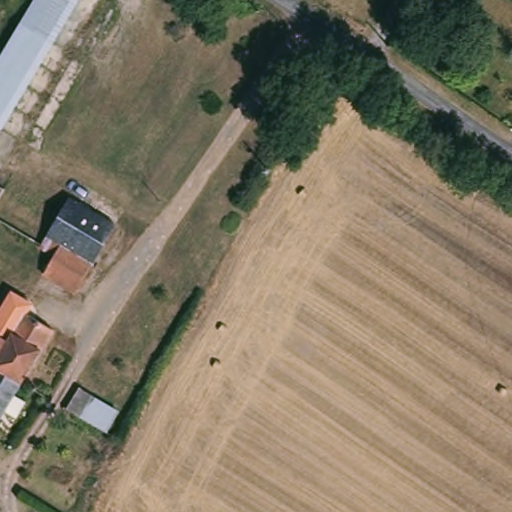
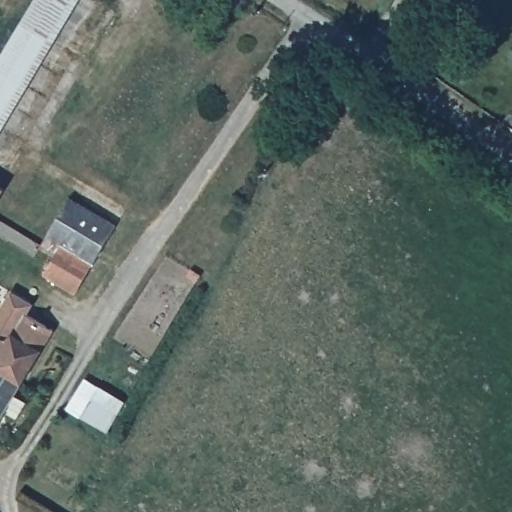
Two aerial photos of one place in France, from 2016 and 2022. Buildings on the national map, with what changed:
unchanged [(77,0),(24,85),(0,70),(42,0),(77,0)]
unchanged [(0,127),(0,70),(24,85),(0,127)]
unchanged [(0,201),(0,181),(8,186),(0,201)]
unchanged [(124,224),(84,292),(51,272),(61,255),(51,250),(65,225),(64,224),(79,197),(124,224)]
unchanged [(14,296),(18,288),(32,298),(25,308),(30,311),(22,325),(9,317),(0,332),(11,340),(1,360),(0,359),(0,311),(10,294),(14,296)]
unchanged [(59,326),(29,376),(22,372),(1,360),(11,340),(0,332),(9,317),(22,325),(30,311),(59,326)]
unchanged [(0,359),(1,360),(22,372),(29,376),(0,423),(0,359)]

